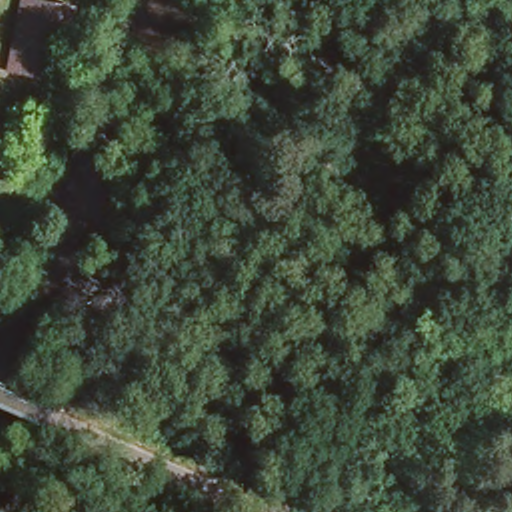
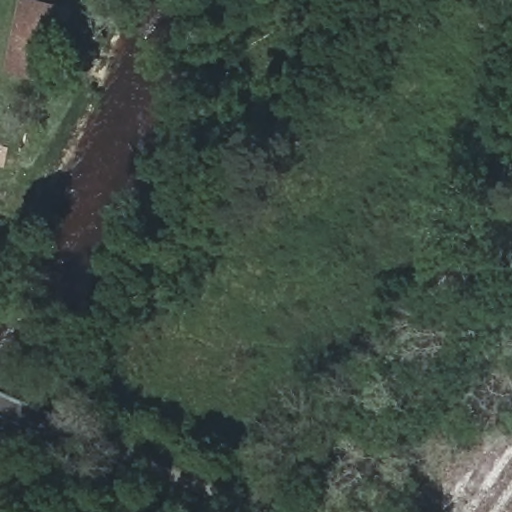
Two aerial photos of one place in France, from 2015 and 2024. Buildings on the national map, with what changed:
unchanged [(55,72),(15,67),(23,0),(35,0),(65,4),(55,72)]

